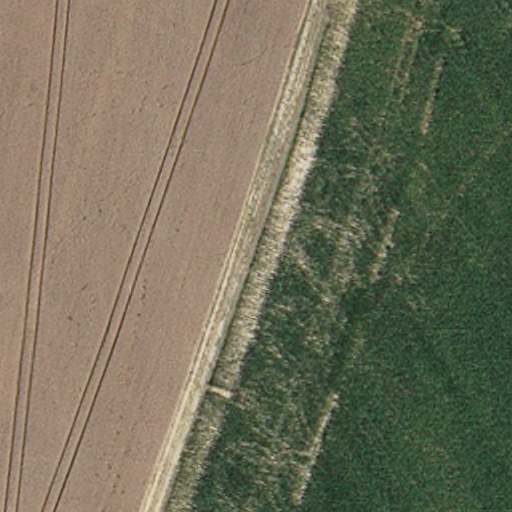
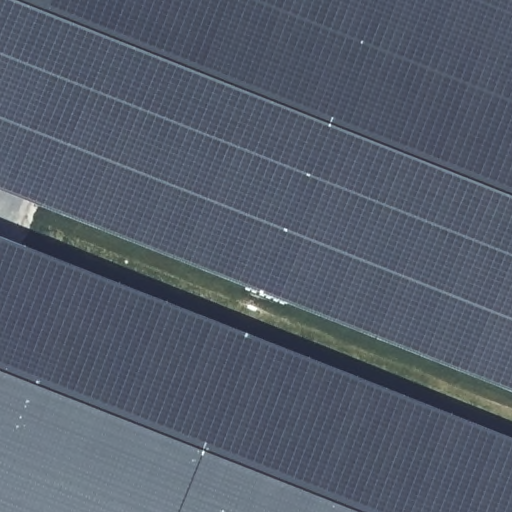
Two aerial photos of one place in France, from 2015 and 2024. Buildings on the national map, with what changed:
new [(512,1),(512,394),(0,191),(0,0),(510,0),(512,1)]
new [(512,441),(512,512),(0,512),(0,238),(512,441)]

